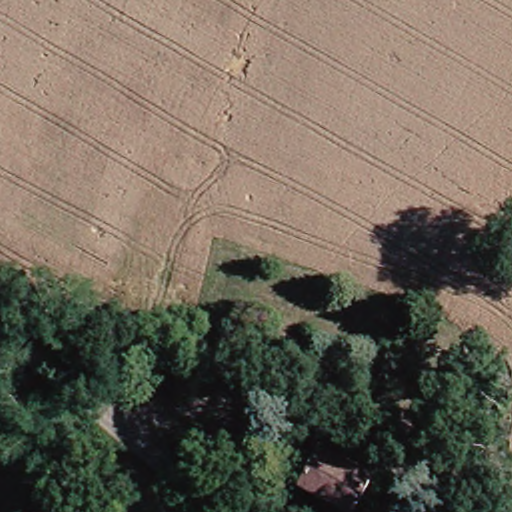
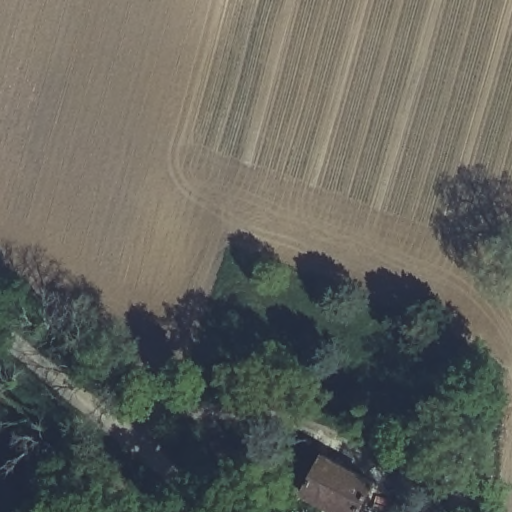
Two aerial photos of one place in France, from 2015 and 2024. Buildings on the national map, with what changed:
unchanged [(310,488),(330,451),(383,479),(366,512),(354,512),(310,488)]

